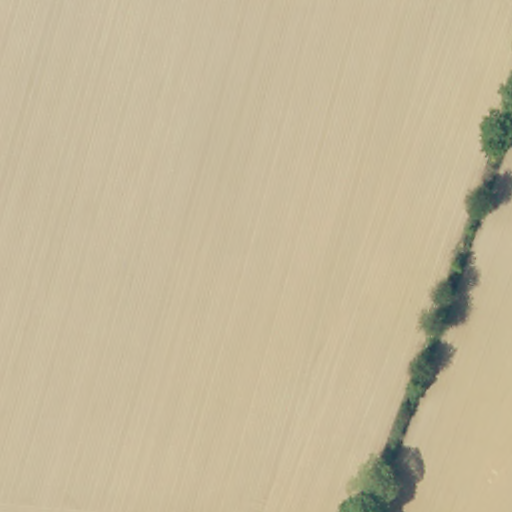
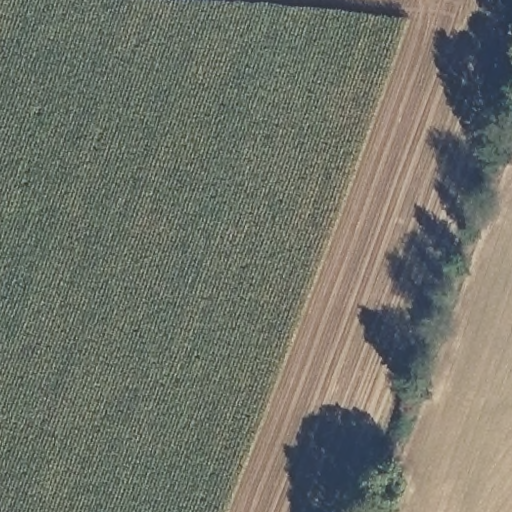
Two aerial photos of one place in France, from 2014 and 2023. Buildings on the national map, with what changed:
[]

